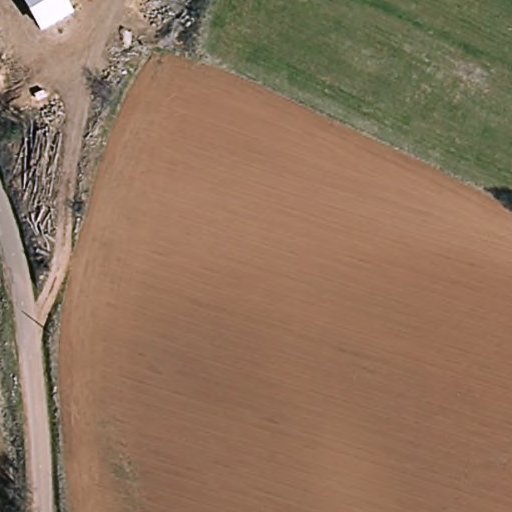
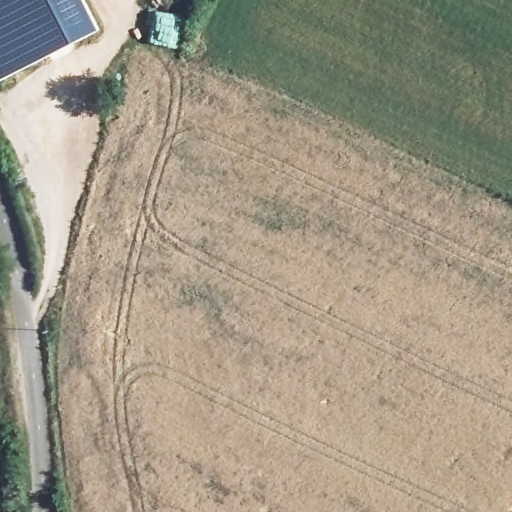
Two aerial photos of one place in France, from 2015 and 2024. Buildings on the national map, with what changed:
new [(84,0),(100,31),(0,82),(0,0),(84,0)]
demolished [(41,31),(23,0),(66,0),(73,12),(41,31)]

